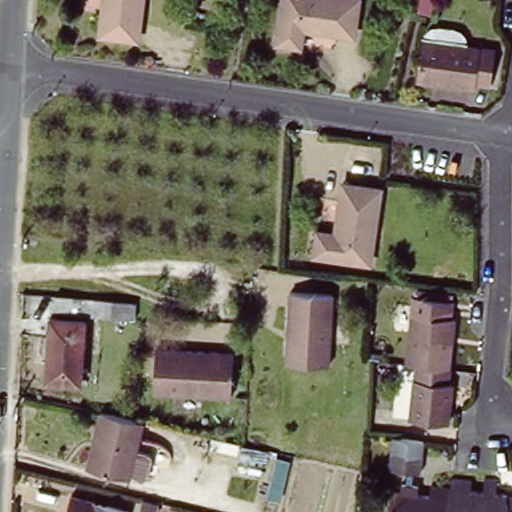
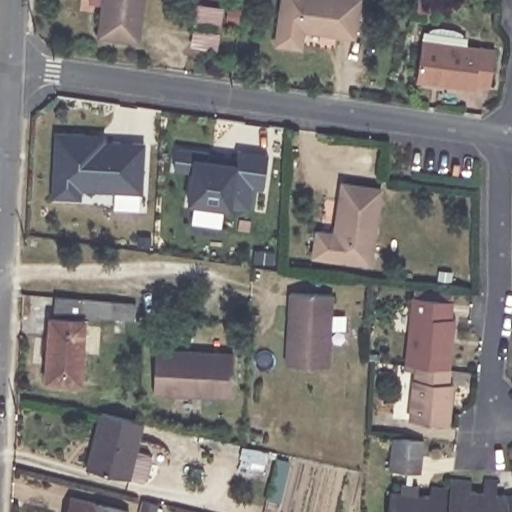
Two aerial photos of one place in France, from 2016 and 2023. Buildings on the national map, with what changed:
unchanged [(140,0),(135,38),(97,33),(102,0),(140,0)]
unchanged [(324,0),(321,28),(307,26),(305,43),(280,39),(286,0),(324,0)]
unchanged [(360,0),(356,33),(321,28),(324,0),(360,0)]
unchanged [(426,41),(428,41),(430,36),(440,30),(461,33),(468,41),(467,46),(499,52),(495,88),(480,86),(480,91),(421,83),(426,41)]
new [(55,130),(95,133),(95,141),(110,142),(111,140),(143,141),(140,190),(113,189),(113,186),(80,184),(79,196),(51,195),(55,130)]
new [(176,146),(208,151),(208,153),(213,154),(212,158),(235,162),(236,149),(267,153),(262,185),(250,183),(247,206),(230,204),(230,206),(187,200),(192,169),(173,166),(176,146)]
unchanged [(370,269),(313,261),(317,237),(335,239),(342,190),(380,196),(370,269)]
new [(116,191),(142,193),(142,211),(115,209),(116,191)]
unchanged [(323,361),(282,356),(293,287),(333,292),(323,361)]
unchanged [(131,320),(108,318),(50,315),(50,299),(109,304),(132,305),(131,320)]
unchanged [(451,325),(455,326),(449,376),(416,373),(406,372),(414,306),(452,310),(451,325)]
unchanged [(75,387),(40,384),(45,321),(80,324),(75,387)]
unchanged [(155,344),(233,352),(227,399),(150,391),(155,344)]
unchanged [(449,376),(452,376),(450,389),(453,390),(450,429),(410,425),(416,373),(449,376)]
unchanged [(86,473),(91,452),(99,416),(101,416),(141,425),(133,461),(129,482),(86,473)]
unchanged [(391,469),(395,436),(426,439),(422,472),(391,469)]
unchanged [(473,492),(484,493),(485,485),(499,486),(498,496),(507,497),(512,496),(512,512),(446,512),(450,488),(451,478),(475,481),(473,492)]
unchanged [(400,492),(401,485),(419,488),(418,495),(430,497),(431,486),(450,488),(446,512),(387,512),(390,491),(400,492)]
unchanged [(65,494),(122,509),(122,512),(60,512),(65,494)]

